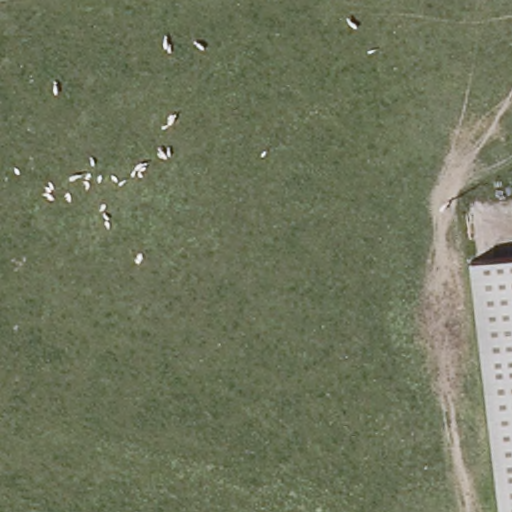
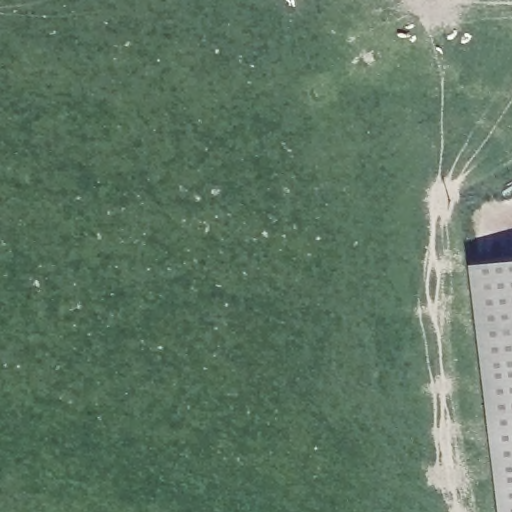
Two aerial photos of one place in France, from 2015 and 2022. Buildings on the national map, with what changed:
unchanged [(512,512),(499,512),(470,258),(512,253),(512,512)]

